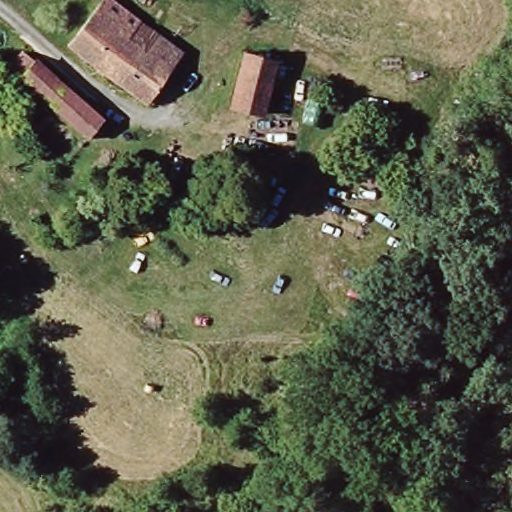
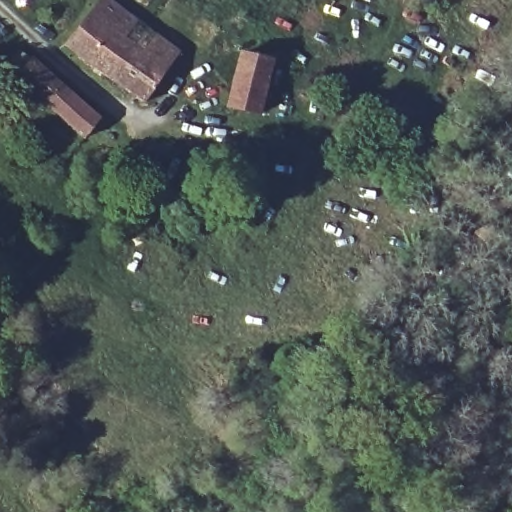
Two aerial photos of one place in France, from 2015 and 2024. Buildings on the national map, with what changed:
unchanged [(108,0),(111,0),(187,59),(148,104),(69,43),(108,0)]
unchanged [(26,51),(103,120),(93,132),(16,62),(26,51)]
unchanged [(244,56),(273,64),(267,104),(265,112),(236,104),(239,84),(244,56)]

